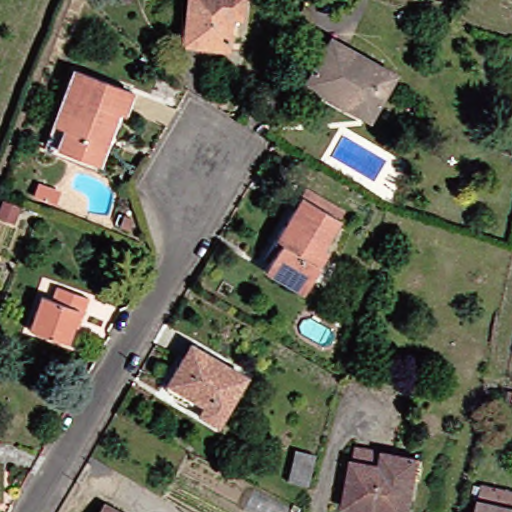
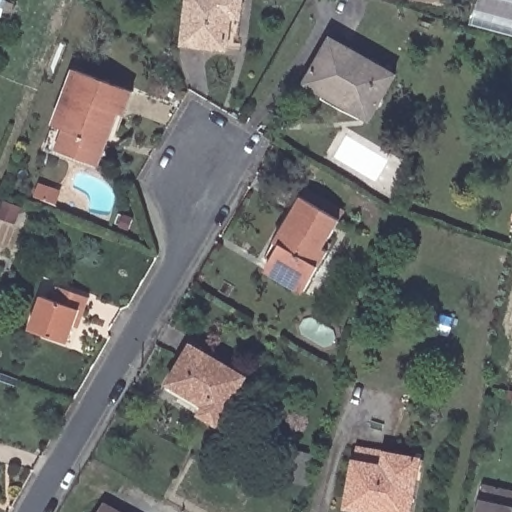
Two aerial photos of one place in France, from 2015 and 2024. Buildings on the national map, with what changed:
unchanged [(235,51),(184,44),(189,0),(240,0),(235,51)]
new [(470,24),(477,0),(512,0),(512,36),(470,24)]
unchanged [(350,112),(347,115),(325,101),(326,99),(305,87),(333,40),(396,79),(371,124),(350,112)]
unchanged [(137,91),(129,115),(120,111),(102,164),(50,145),(75,70),(137,91)]
unchanged [(308,297),(273,278),(278,268),(270,263),(307,199),(345,219),(328,251),(333,255),(308,297)]
unchanged [(31,327),(45,291),(57,296),(62,283),(97,295),(91,313),(85,311),(81,323),(75,341),(31,327)]
unchanged [(224,421),(204,412),(208,402),(174,386),(195,345),(248,371),(224,421)]
unchanged [(360,461),(361,448),(389,452),(426,458),(417,510),(417,512),(369,512),(352,510),(360,461)]
unchanged [(512,490),(512,512),(479,512),(485,485),(512,490)]
unchanged [(117,512),(106,512),(109,507),(117,512)]

